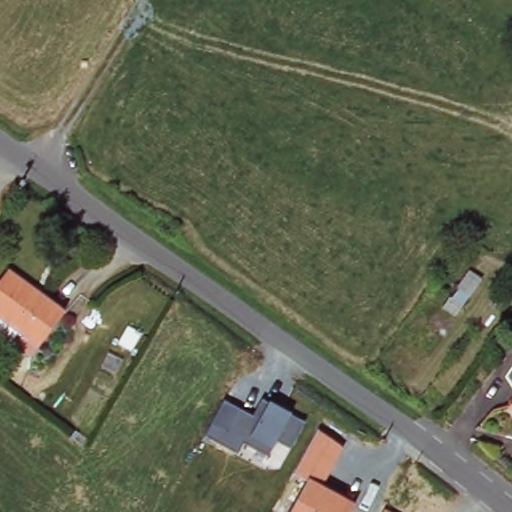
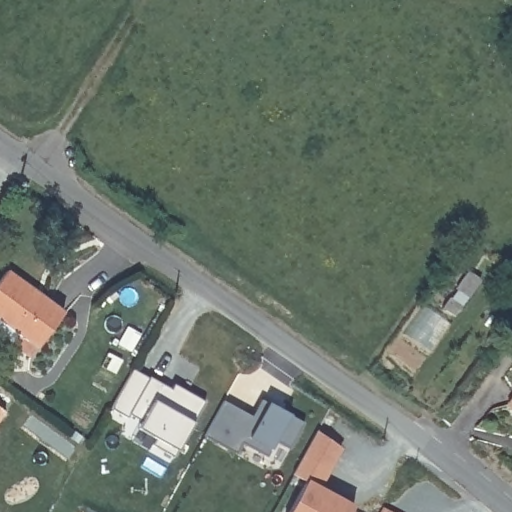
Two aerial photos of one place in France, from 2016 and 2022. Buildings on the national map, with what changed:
unchanged [(5,267),(62,310),(29,355),(9,340),(0,333),(0,274),(5,267)]
unchanged [(499,329),(512,312),(512,333),(509,337),(499,329)]
new [(149,376),(150,374),(165,383),(172,386),(174,382),(206,399),(174,455),(153,443),(160,429),(130,412),(129,415),(111,405),(133,367),(149,376)]
unchanged [(305,421),(289,450),(276,444),(268,456),(242,443),(235,455),(204,438),(223,400),(252,415),(261,400),(305,421)]
unchanged [(512,403),(512,412),(507,409),(512,403)]
new [(4,411),(0,417),(0,408),(4,411)]
unchanged [(342,449),(324,487),(354,504),(349,512),(290,512),(306,481),(294,475),(317,432),(342,449)]
unchanged [(394,512),(381,512),(384,507),(394,512)]

